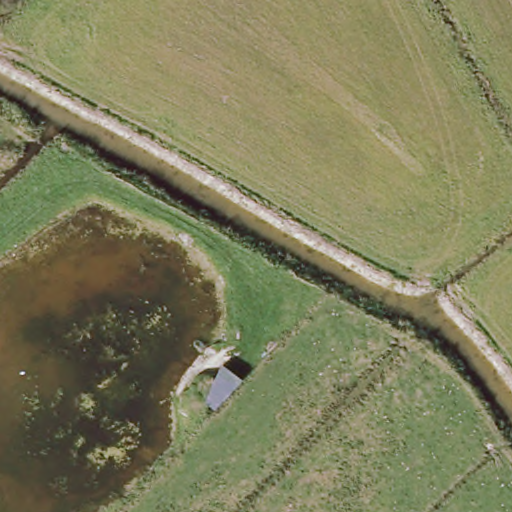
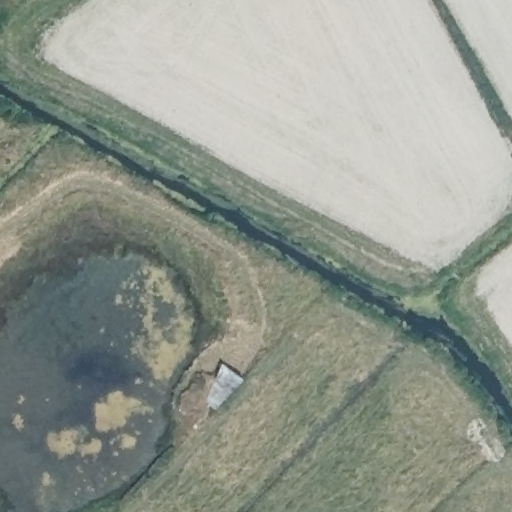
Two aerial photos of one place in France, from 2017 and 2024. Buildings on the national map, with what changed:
unchanged [(192,386),(205,386),(205,402),(188,402),(192,386)]

